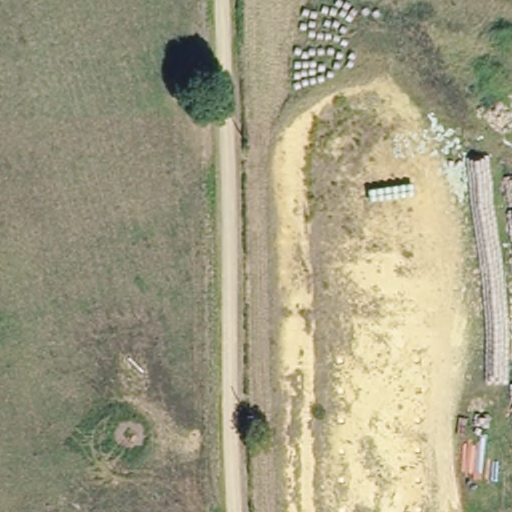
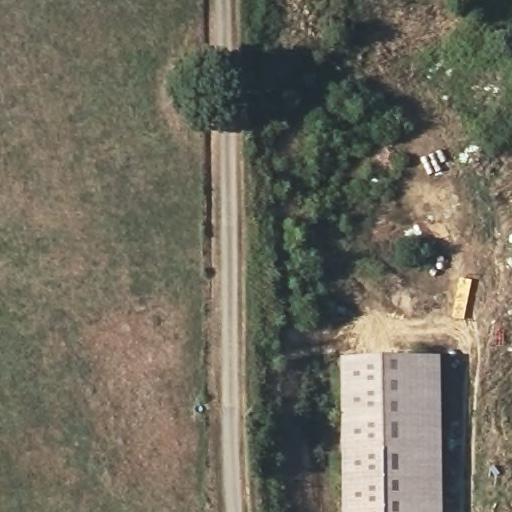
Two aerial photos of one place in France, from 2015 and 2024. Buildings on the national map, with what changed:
new [(354,512),(346,360),(424,357),(432,512),(354,512)]

